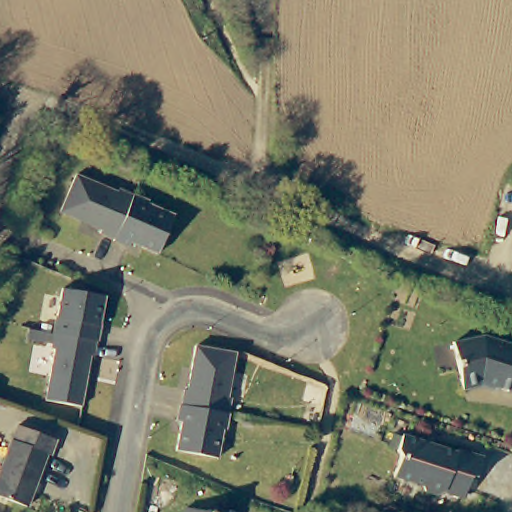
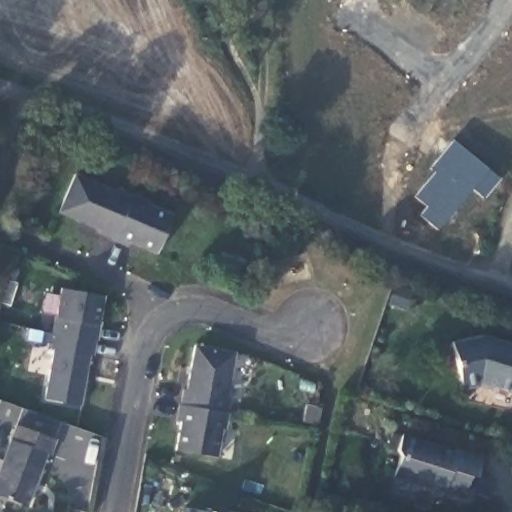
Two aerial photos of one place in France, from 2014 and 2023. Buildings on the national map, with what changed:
new [(433,174),(428,171),(451,142),(497,181),(482,200),(471,191),(436,232),(418,217),(425,209),(412,199),(433,174)]
unchanged [(85,214),(62,205),(73,172),(112,187),(115,181),(149,195),(147,200),(175,210),(162,247),(151,242),(151,240),(135,234),(132,241),(99,228),(101,220),(85,214)]
unchanged [(52,400),(60,350),(54,349),(64,285),(109,295),(107,312),(99,358),(94,357),(86,408),(52,400)]
unchanged [(512,341),(512,377),(508,389),(481,378),(457,384),(447,337),(477,330),(512,341)]
unchanged [(235,394),(230,424),(224,423),(218,458),(182,452),(186,433),(190,417),(185,416),(190,385),(195,385),(197,364),(202,340),(236,346),(229,392),(235,394)]
unchanged [(62,441),(57,455),(52,453),(31,507),(0,492),(0,474),(19,422),(62,441)]
unchanged [(452,443),(477,453),(471,471),(465,468),(457,493),(438,486),(433,489),(420,483),(418,480),(392,471),(398,450),(396,443),(401,429),(451,447),(452,443)]
unchanged [(189,506),(226,512),(187,512),(189,506)]

